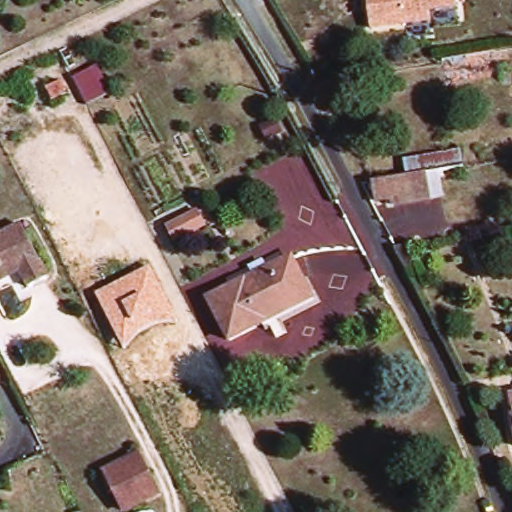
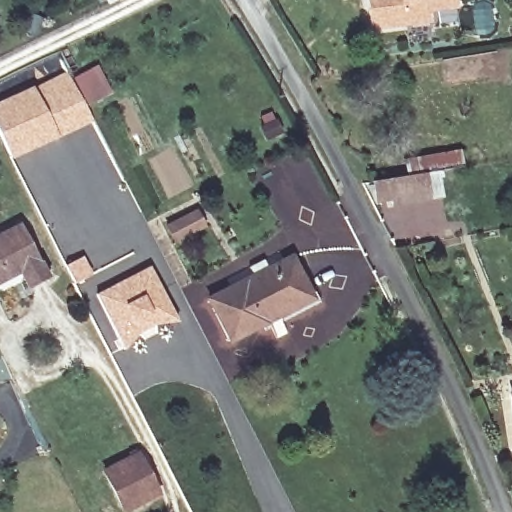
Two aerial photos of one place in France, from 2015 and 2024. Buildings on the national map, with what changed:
unchanged [(467,7),(440,11),(441,22),(383,31),(380,0),(466,0),(467,7)]
new [(0,134),(0,102),(36,85),(70,70),(73,78),(97,66),(110,94),(85,105),(92,120),(11,157),(0,134)]
demolished [(82,100),(67,107),(61,94),(77,86),(82,100)]
unchanged [(382,181),(417,175),(417,156),(472,148),(477,167),(437,172),(440,193),(385,203),(382,181)]
unchanged [(187,251),(180,235),(210,220),(218,236),(187,251)]
unchanged [(37,285),(29,271),(1,285),(0,284),(0,237),(31,221),(57,275),(37,285)]
unchanged [(320,291),(326,288),(331,298),(276,327),(273,322),(240,336),(219,297),(302,257),(320,291)]
unchanged [(179,322),(161,322),(148,326),(134,337),(124,348),(96,294),(151,266),(179,322)]
unchanged [(0,407),(0,387),(5,406),(0,407)]
unchanged [(166,492),(132,507),(116,477),(152,460),(166,492)]

